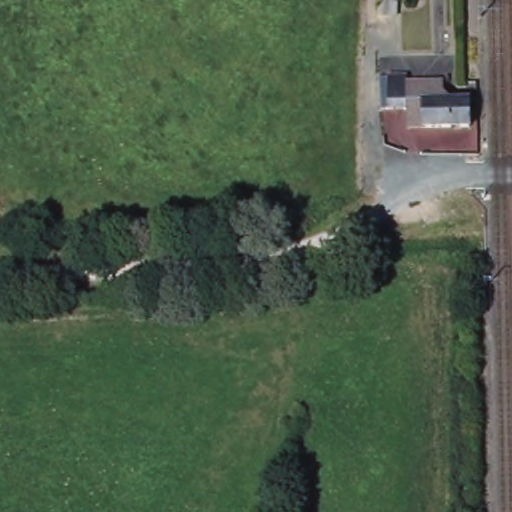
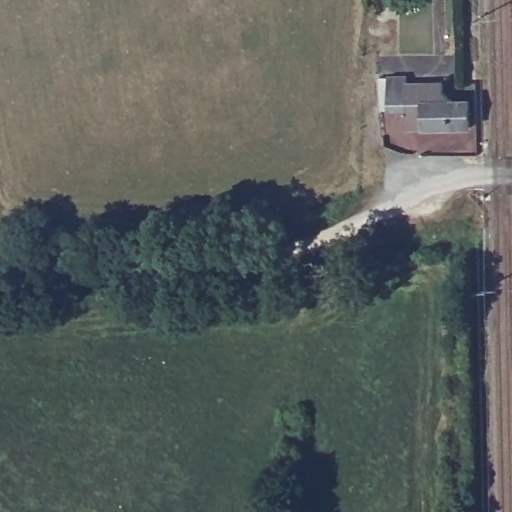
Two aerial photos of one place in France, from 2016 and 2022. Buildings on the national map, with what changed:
unchanged [(383,1),(383,0),(400,0),(400,2),(383,1)]
unchanged [(471,126),(408,127),(408,108),(381,107),(381,73),(407,74),(410,82),(446,82),(446,94),(455,101),(471,101),(471,126)]

